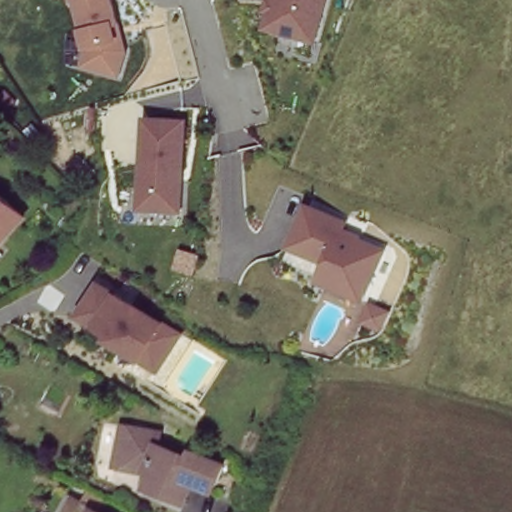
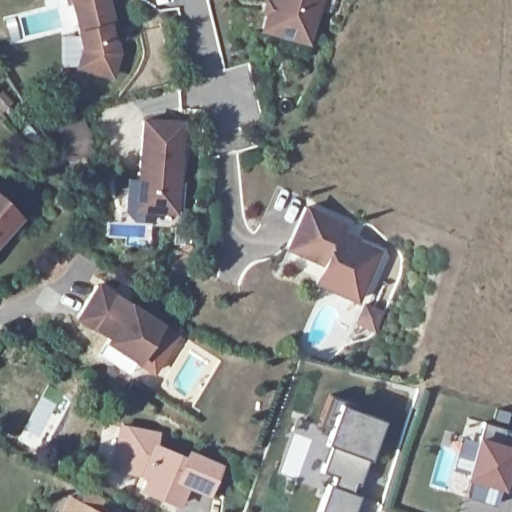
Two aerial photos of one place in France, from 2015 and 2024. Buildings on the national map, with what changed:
unchanged [(125,48),(118,71),(85,61),(90,46),(85,26),(87,26),(81,0),(115,0),(125,48)]
unchanged [(308,43),(258,30),(267,0),(322,0),(308,43)]
unchanged [(187,117),(182,213),(136,212),(140,116),(187,117)]
unchanged [(0,244),(0,193),(25,216),(0,244)]
unchanged [(346,220),(343,230),(383,248),(358,302),(310,282),(315,267),(281,252),(303,202),(346,220)]
unchanged [(176,336),(153,372),(110,344),(105,341),(108,337),(76,317),(84,304),(96,285),(176,336)]
new [(352,424),(361,427),(365,415),(383,421),(360,486),(355,485),(352,494),(360,497),(355,512),(319,512),(328,486),(331,486),(335,477),(321,473),(335,433),(317,426),(328,395),(358,407),(352,424)]
unchanged [(188,474),(179,495),(142,477),(150,464),(145,461),(115,455),(122,415),(157,422),(155,436),(185,450),(187,443),(218,457),(207,483),(196,478),(188,474)]
new [(312,425),(308,438),(292,433),(295,420),(312,425)]
new [(512,432),(512,464),(510,464),(502,488),(498,488),(494,505),(465,497),(470,478),(467,477),(477,439),(500,445),(503,430),(512,432)]
unchanged [(102,512),(64,512),(72,497),(102,512)]

